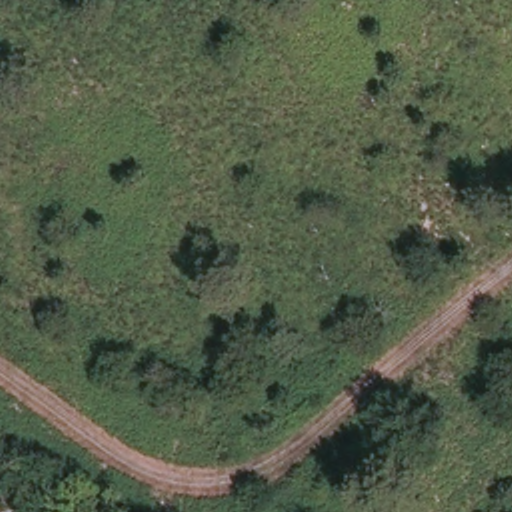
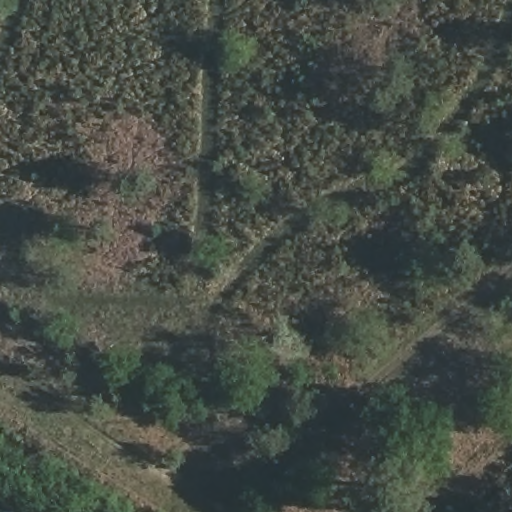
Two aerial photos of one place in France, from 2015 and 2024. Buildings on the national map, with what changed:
unchanged [(5,512),(0,512),(0,509),(5,512)]

